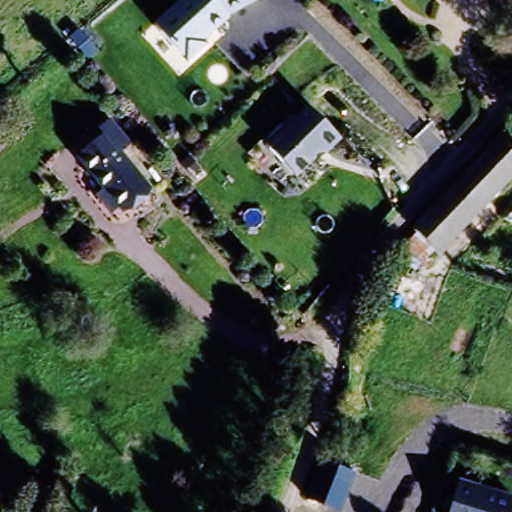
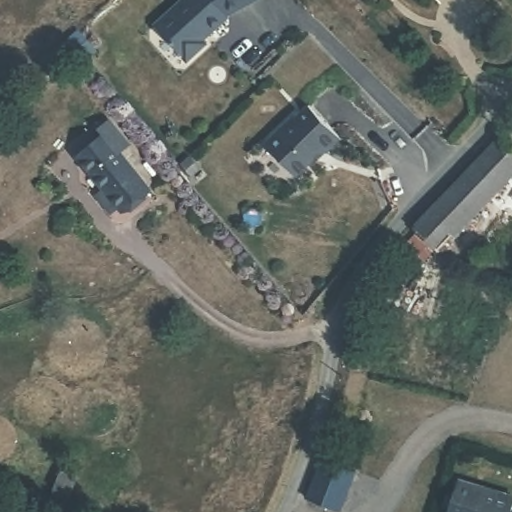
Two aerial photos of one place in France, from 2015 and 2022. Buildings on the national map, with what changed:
unchanged [(191,59),(159,24),(185,0),(223,0),(236,14),(191,59)]
unchanged [(257,0),(236,14),(223,0),(257,0)]
unchanged [(308,105),(340,140),(296,178),(282,164),(274,172),(260,157),(268,149),(264,144),(308,105)]
unchanged [(512,145),(512,172),(447,254),(443,251),(409,227),(445,182),(491,126),(512,145)]
unchanged [(150,192),(123,211),(81,151),(108,132),(150,192)]
unchanged [(409,227),(443,251),(419,280),(389,253),(409,227)]
unchanged [(362,466),(345,512),(305,512),(301,511),(321,453),(362,466)]
unchanged [(471,479),(512,492),(512,512),(464,512),(471,479)]

